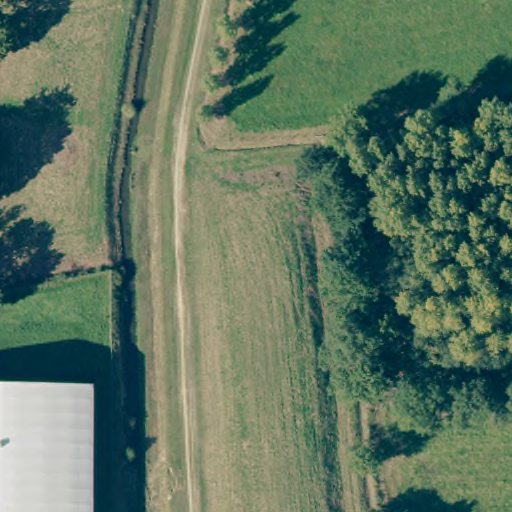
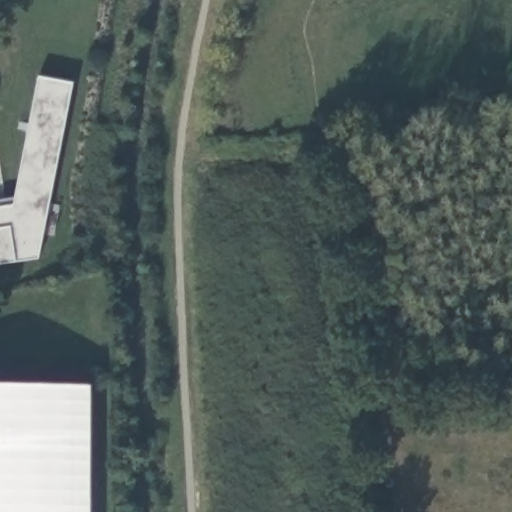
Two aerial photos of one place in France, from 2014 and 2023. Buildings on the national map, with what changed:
new [(15,199),(39,77),(74,84),(39,261),(16,265),(0,267),(0,201),(15,199)]
unchanged [(91,512),(0,512),(0,385),(91,385),(91,512)]

